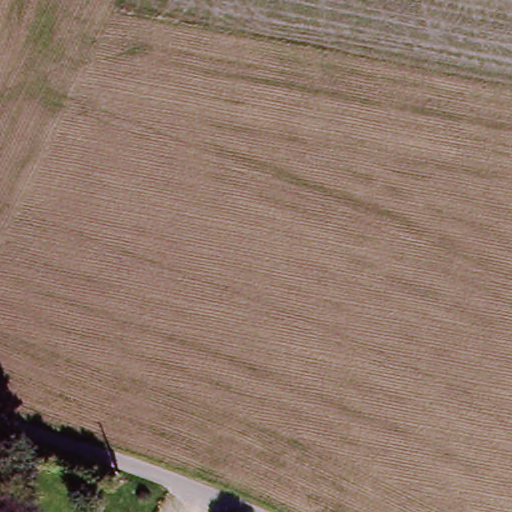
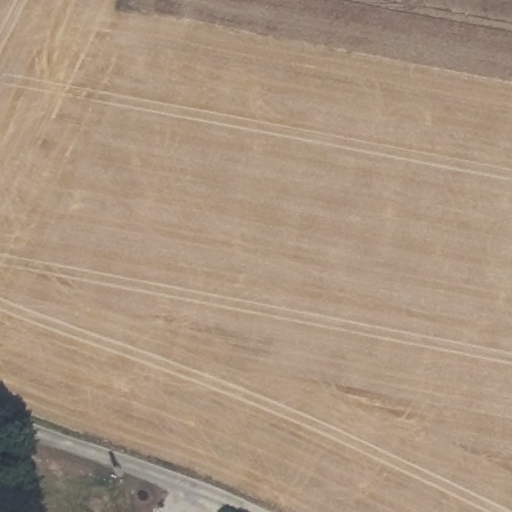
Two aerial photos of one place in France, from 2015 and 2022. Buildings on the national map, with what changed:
[]

